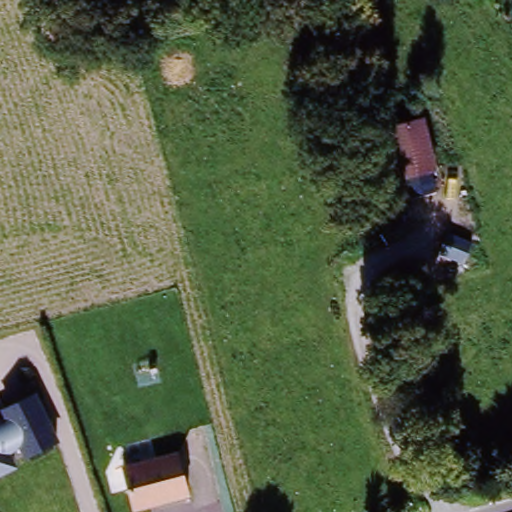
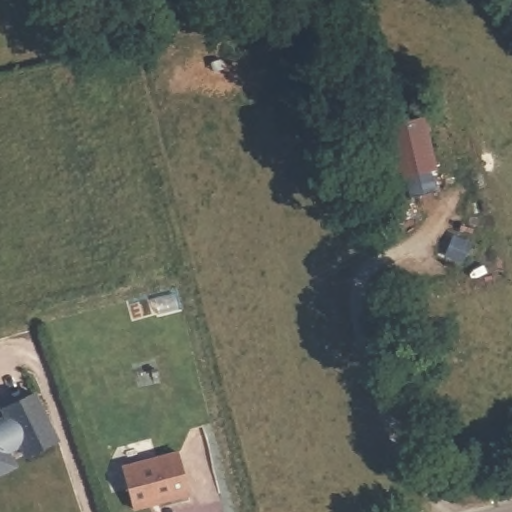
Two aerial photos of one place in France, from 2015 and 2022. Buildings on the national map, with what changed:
unchanged [(435,175),(406,185),(390,130),(420,120),(435,175)]
unchanged [(5,459),(12,477),(0,482),(0,410),(35,395),(53,442),(5,459)]
unchanged [(179,460),(189,498),(129,509),(119,473),(179,460)]

